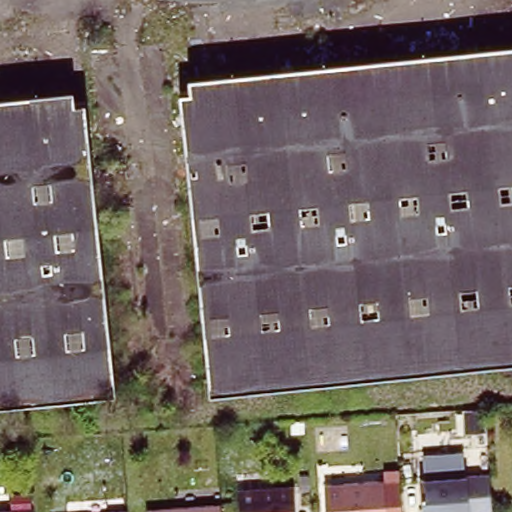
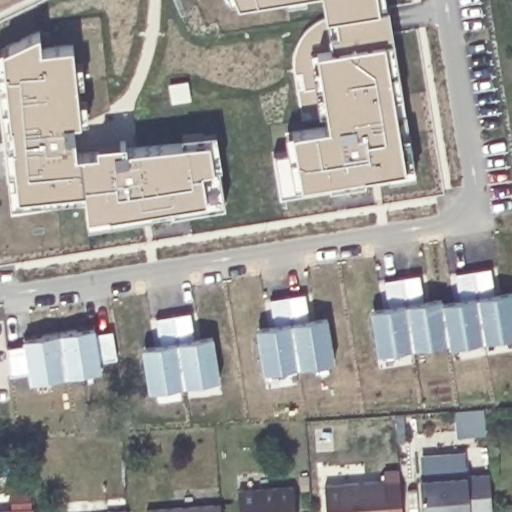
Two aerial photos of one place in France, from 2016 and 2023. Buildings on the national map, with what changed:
demolished [(212,391),(182,92),(512,58),(512,359),(212,391)]
demolished [(0,112),(85,103),(115,391),(0,403),(0,112)]
unchanged [(425,512),(422,480),(490,475),(492,511),(479,512),(425,512)]
unchanged [(386,482),(388,512),(328,512),(327,485),(386,482)]
unchanged [(294,487),(296,512),(240,512),(238,491),(294,487)]
unchanged [(222,506),(223,512),(147,512),(147,511),(222,506)]
unchanged [(36,512),(21,512),(35,511),(36,512)]
unchanged [(128,512),(111,512),(128,511),(128,512)]

